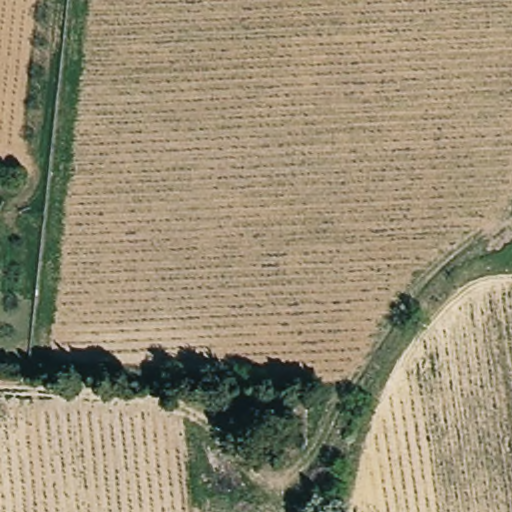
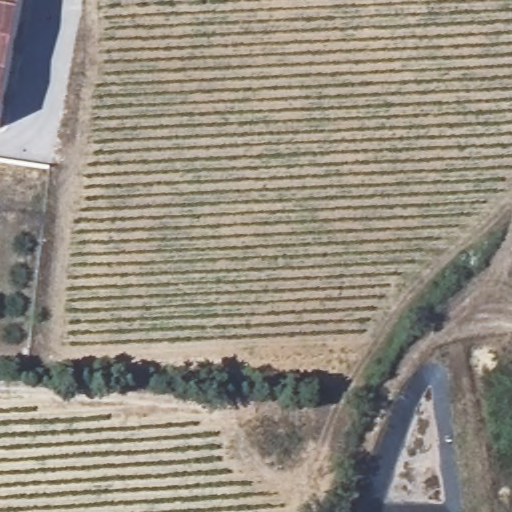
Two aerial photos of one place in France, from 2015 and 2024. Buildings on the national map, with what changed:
new [(20,18),(8,80),(0,118),(0,0),(23,0),(20,18)]

